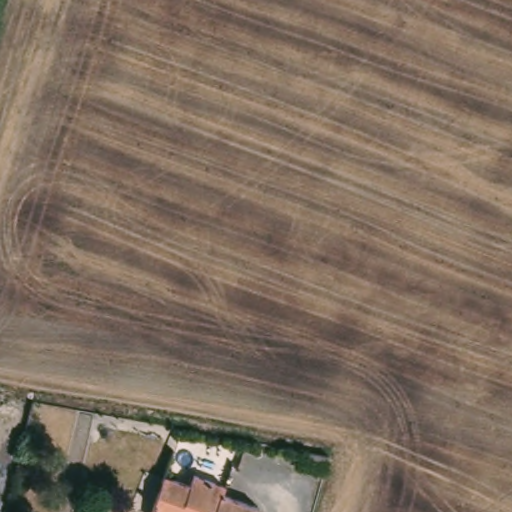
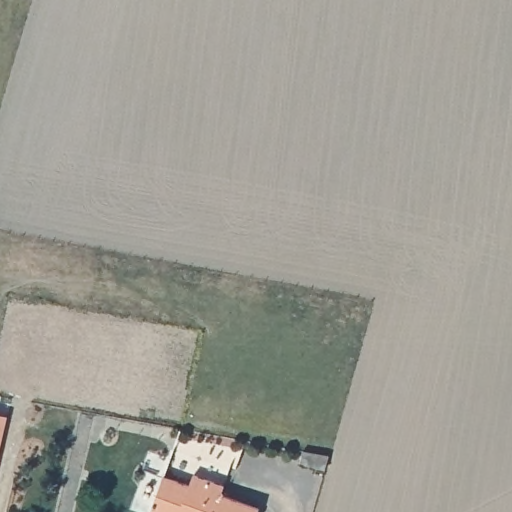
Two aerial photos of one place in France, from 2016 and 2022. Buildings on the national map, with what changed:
new [(0,447),(0,413),(7,414),(0,447)]
unchanged [(192,482),(197,467),(227,477),(223,495),(258,507),(256,512),(152,512),(162,474),(192,482)]

